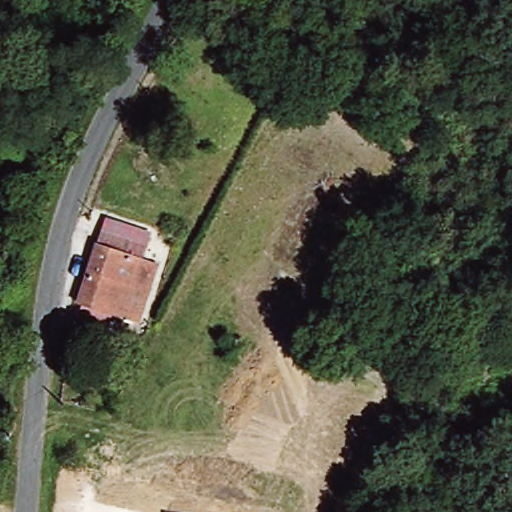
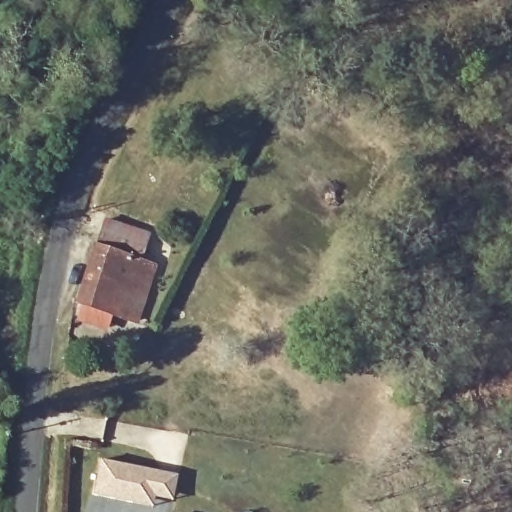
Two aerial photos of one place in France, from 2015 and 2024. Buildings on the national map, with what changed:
unchanged [(155,271),(135,325),(110,316),(105,330),(77,318),(82,307),(79,302),(107,230),(110,221),(150,237),(147,245),(140,265),(155,271)]
new [(95,495),(101,460),(179,475),(176,500),(157,496),(155,506),(95,495)]

